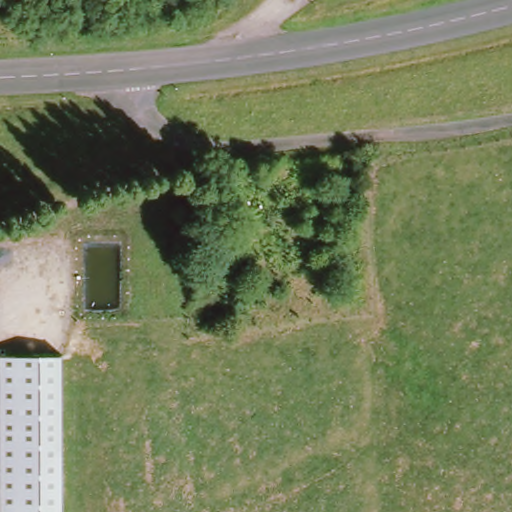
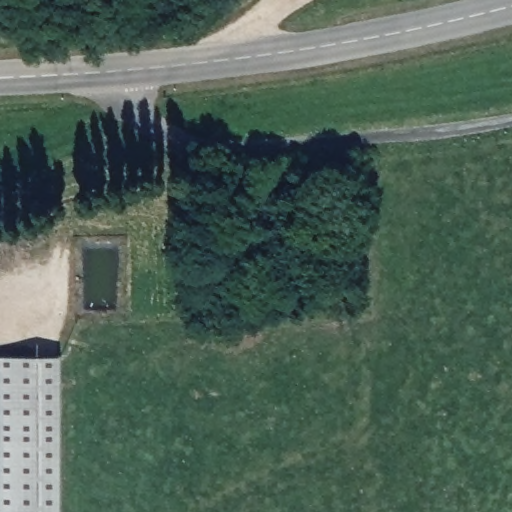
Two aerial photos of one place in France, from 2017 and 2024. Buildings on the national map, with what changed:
unchanged [(62,512),(0,512),(0,358),(62,356),(62,512)]

